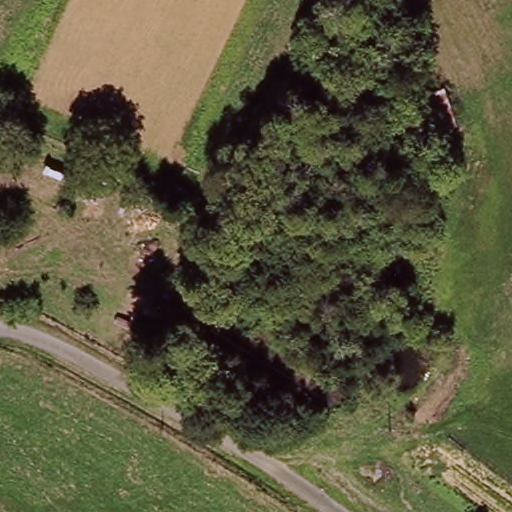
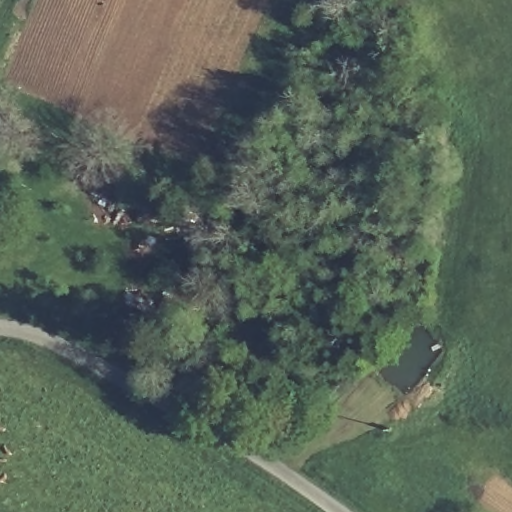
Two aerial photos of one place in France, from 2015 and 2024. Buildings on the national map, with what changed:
[]

